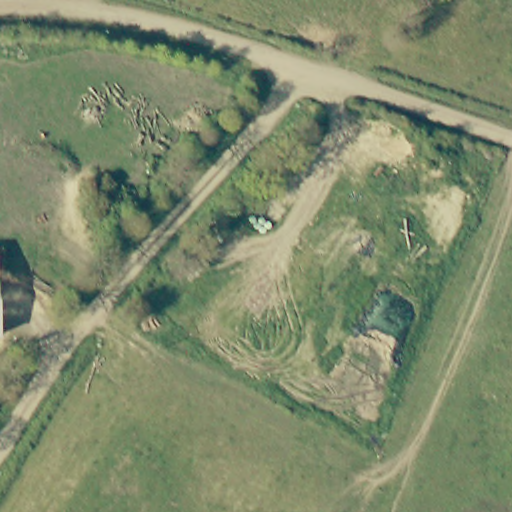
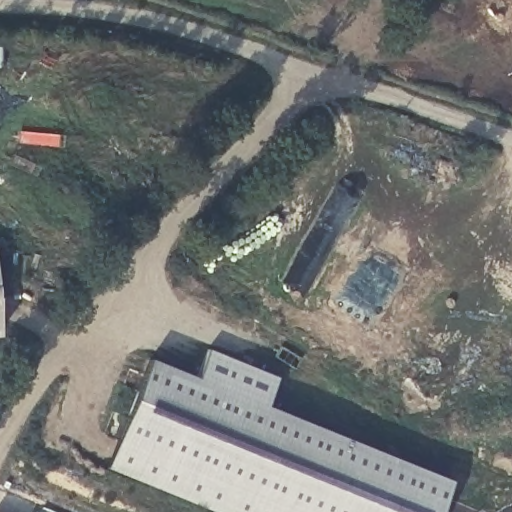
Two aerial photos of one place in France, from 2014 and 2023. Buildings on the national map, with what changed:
new [(148,360),(196,378),(207,350),(277,379),(264,406),(450,481),(438,512),(211,512),(103,469),(148,360)]

